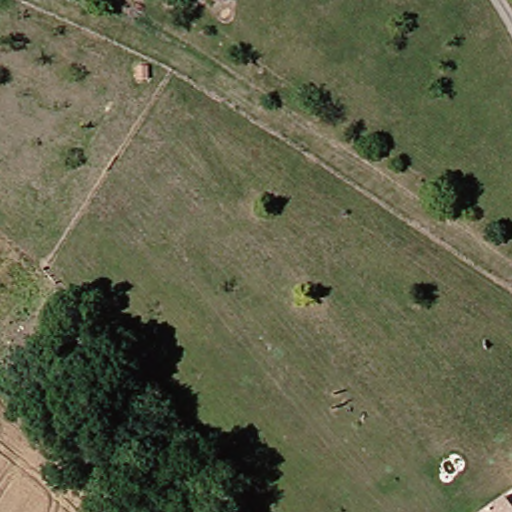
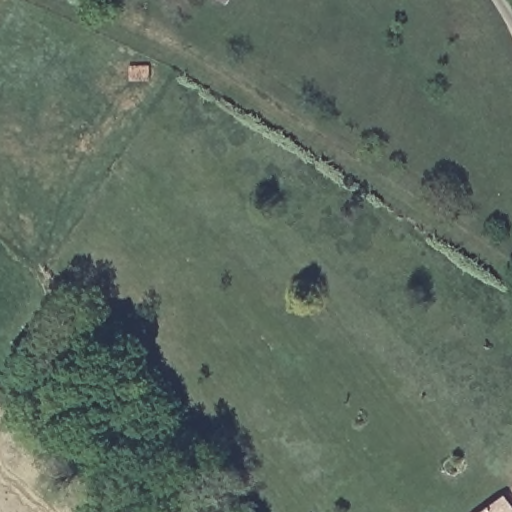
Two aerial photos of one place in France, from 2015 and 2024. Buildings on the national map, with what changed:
unchanged [(222,0),(229,0),(227,4),(222,0)]
unchanged [(503,512),(486,512),(497,503),(503,512)]

